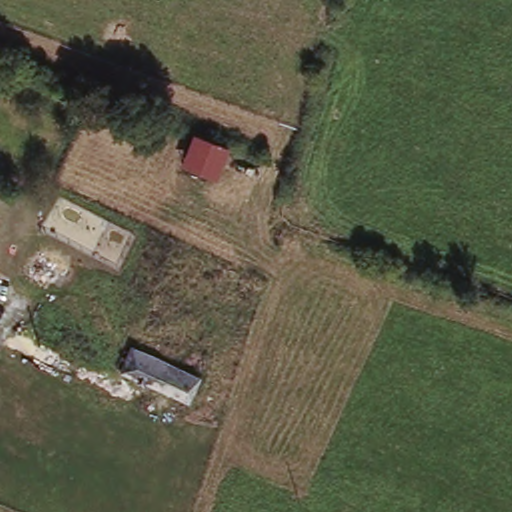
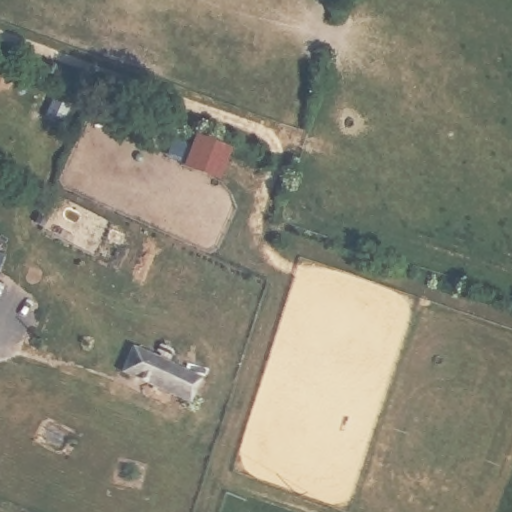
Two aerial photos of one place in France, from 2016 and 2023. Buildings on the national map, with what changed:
unchanged [(232,148),(220,177),(185,162),(197,134),(232,148)]
unchanged [(131,343),(201,375),(190,401),(121,369),(131,343)]

